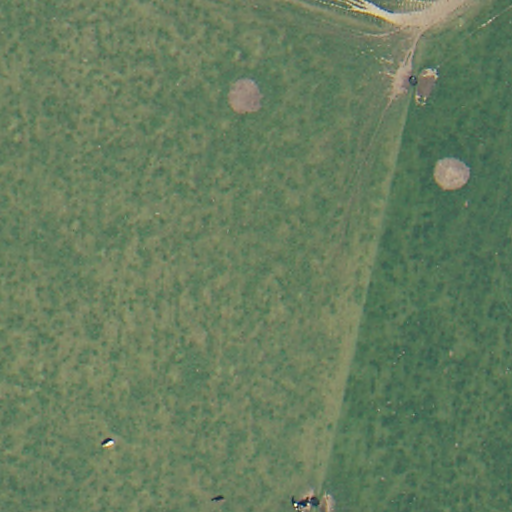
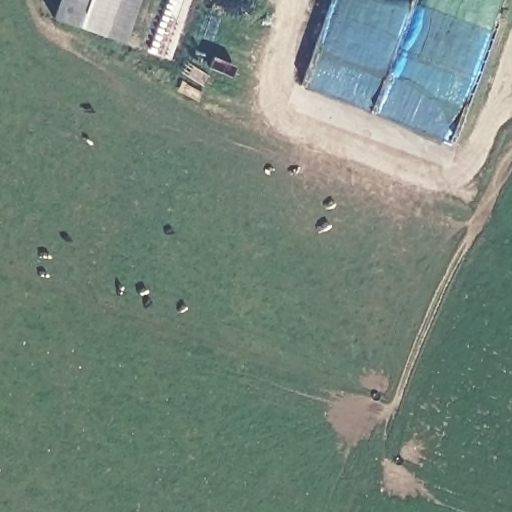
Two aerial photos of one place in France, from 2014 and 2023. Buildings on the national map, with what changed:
new [(52,17),(58,0),(139,0),(124,41),(52,17)]

